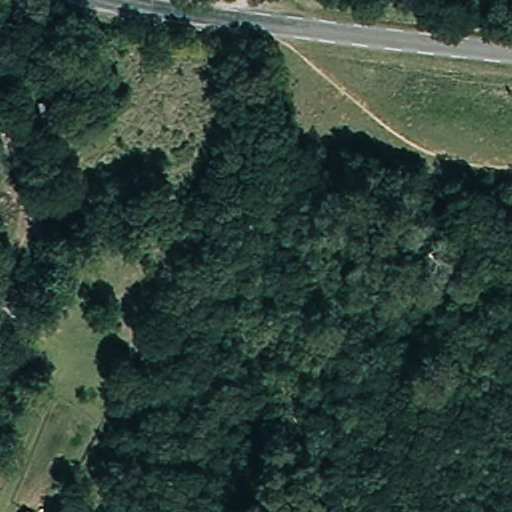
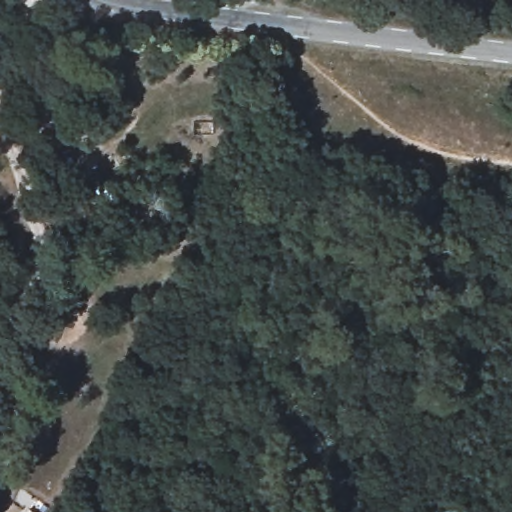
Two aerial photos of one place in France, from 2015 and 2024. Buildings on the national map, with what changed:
unchanged [(50,136),(40,105),(59,97),(70,127),(50,136)]
unchanged [(24,505),(32,512),(19,512),(24,505)]

